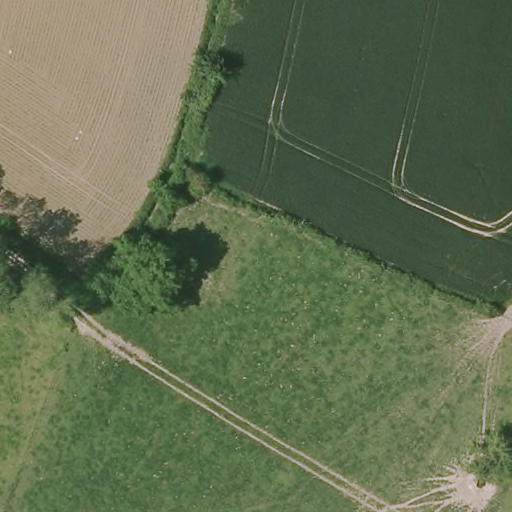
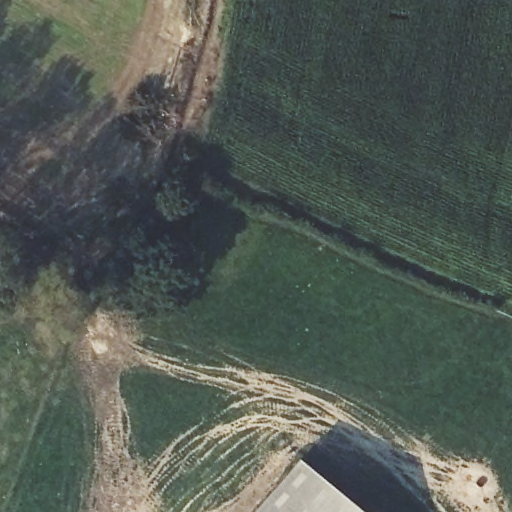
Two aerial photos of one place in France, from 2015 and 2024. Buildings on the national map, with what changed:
new [(294,462),(350,512),(250,512),(294,462)]

